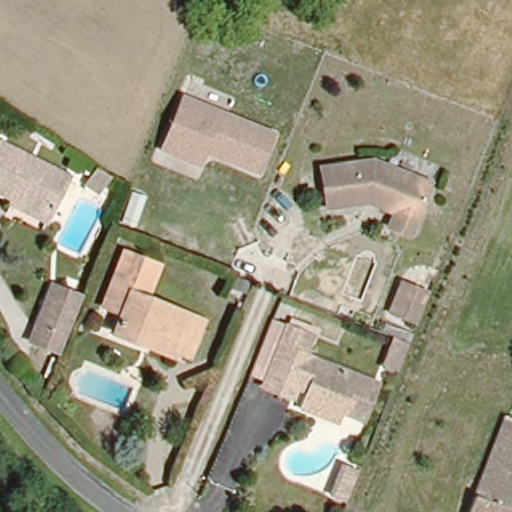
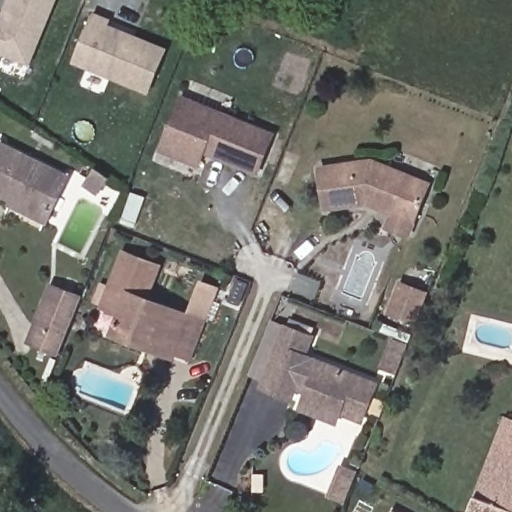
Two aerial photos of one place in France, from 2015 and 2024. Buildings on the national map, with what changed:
new [(0,53),(0,22),(11,26),(21,0),(50,0),(25,63),(0,53)]
new [(95,12),(111,19),(109,24),(127,31),(135,35),(168,48),(151,90),(76,60),(95,12)]
unchanged [(202,166),(163,150),(184,100),(274,136),(258,174),(216,156),(208,152),(202,166)]
unchanged [(9,207),(14,196),(0,190),(0,139),(2,135),(72,167),(52,212),(47,224),(9,207)]
unchanged [(376,228),(382,215),(366,207),(356,202),(352,203),(317,207),(316,199),(312,165),(331,162),(363,160),(419,182),(403,223),(397,237),(376,228)]
demolished [(100,172),(92,187),(78,178),(87,164),(100,172)]
unchanged [(119,246),(161,261),(151,294),(130,284),(118,312),(100,306),(119,246)]
unchanged [(147,341),(112,325),(118,312),(130,284),(151,294),(204,318),(188,351),(176,345),(173,353),(147,341)]
unchanged [(392,315),(404,285),(431,296),(426,310),(419,326),(392,315)]
unchanged [(51,352),(21,341),(44,286),(72,297),(51,352)]
unchanged [(73,331),(68,326),(74,315),(79,319),(73,331)]
unchanged [(296,409),(304,389),(293,385),(289,395),(277,390),(275,395),(256,388),(274,345),(283,325),(304,334),(311,337),(301,357),(333,371),(372,388),(362,413),(343,406),(335,425),(314,416),(296,409)]
unchanged [(406,351),(393,383),(376,377),(390,344),(406,351)]
unchanged [(512,512),(465,512),(503,418),(510,421),(512,417),(512,512)]
new [(393,508),(400,512),(392,512),(393,508)]

